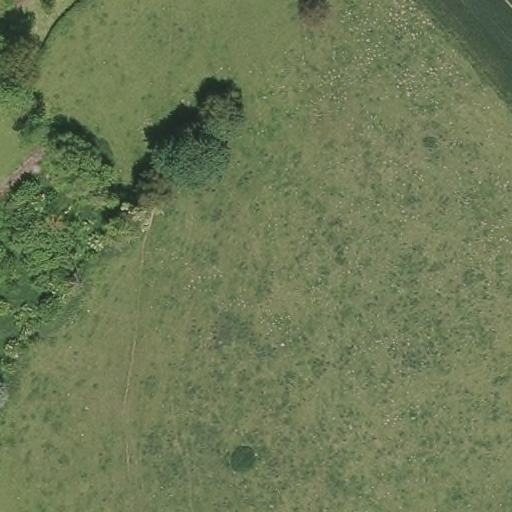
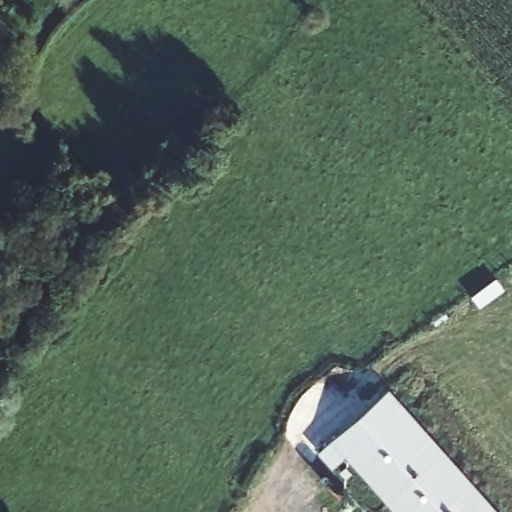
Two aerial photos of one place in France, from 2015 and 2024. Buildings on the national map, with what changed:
new [(347,455),(333,467),(319,451),(391,387),(501,512),(397,512),(347,455)]

